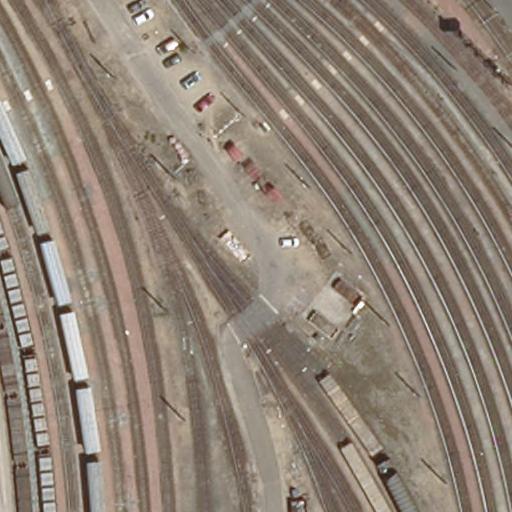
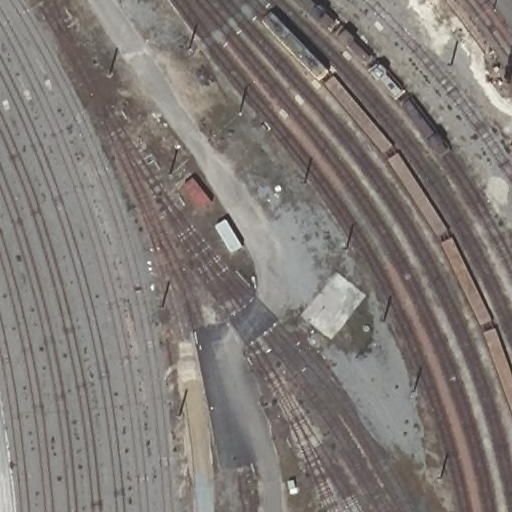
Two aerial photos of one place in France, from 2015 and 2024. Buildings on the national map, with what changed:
[]

